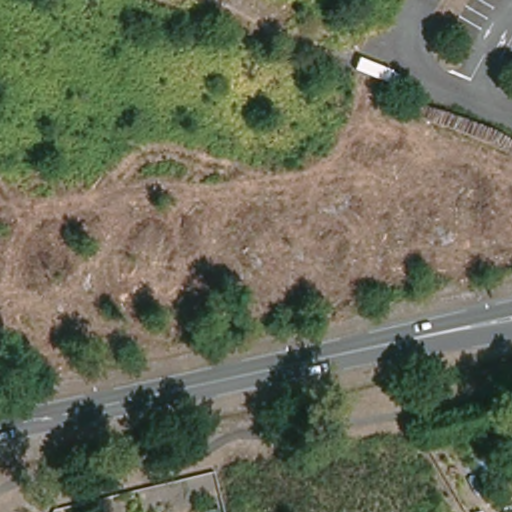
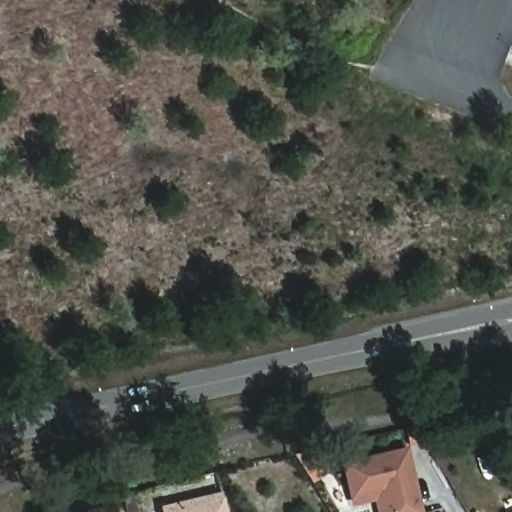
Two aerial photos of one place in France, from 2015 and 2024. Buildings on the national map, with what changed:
new [(373,502),(349,506),(339,462),(406,447),(421,512),(375,512),(373,502)]
new [(215,496),(220,512),(162,512),(161,509),(215,496)]

